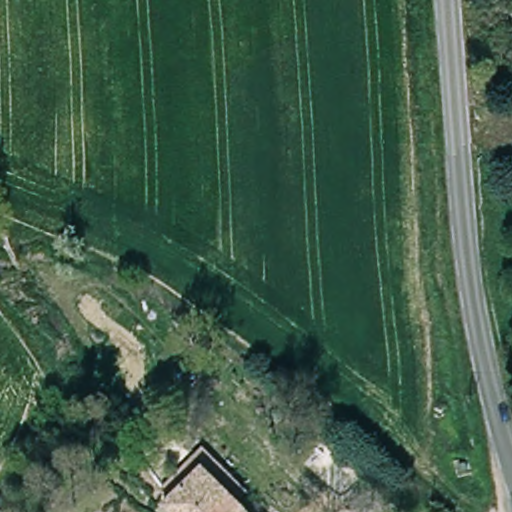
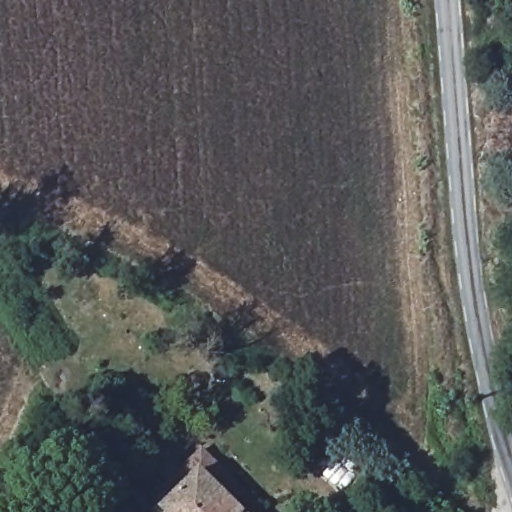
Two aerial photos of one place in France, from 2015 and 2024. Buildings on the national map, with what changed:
unchanged [(160,505),(175,492),(180,486),(201,467),(245,512),(166,512),(160,505)]

